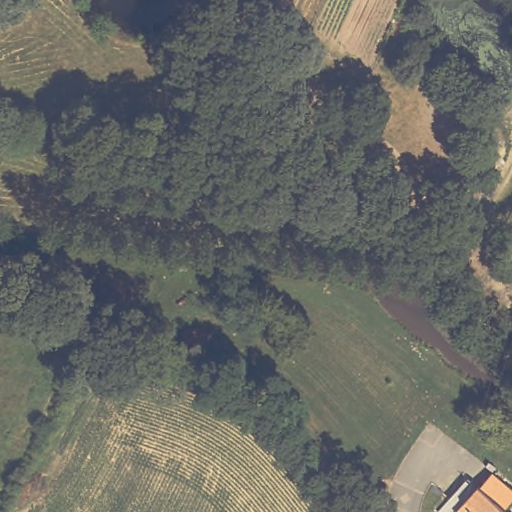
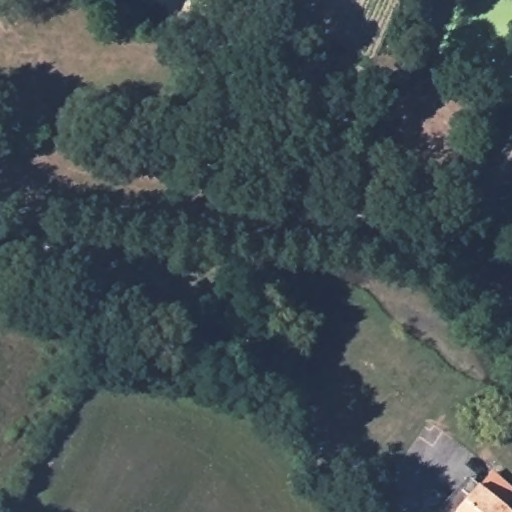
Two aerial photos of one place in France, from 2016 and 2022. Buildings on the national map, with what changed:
unchanged [(177,310),(191,309),(199,321),(193,334),(178,335),(170,323),(177,310)]
unchanged [(484,476),(496,463),(512,478),(512,493),(508,498),(512,502),(512,512),(450,512),(482,474),(484,476)]

